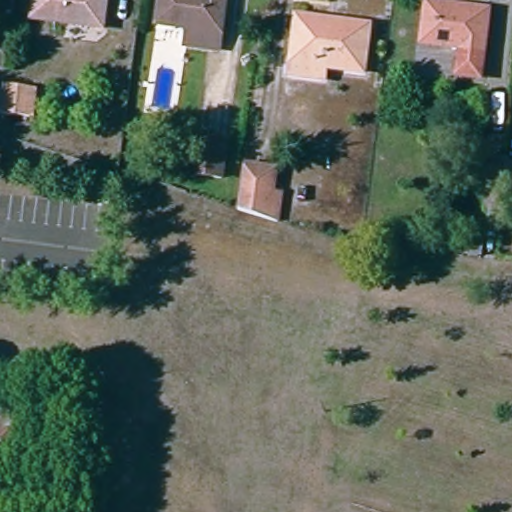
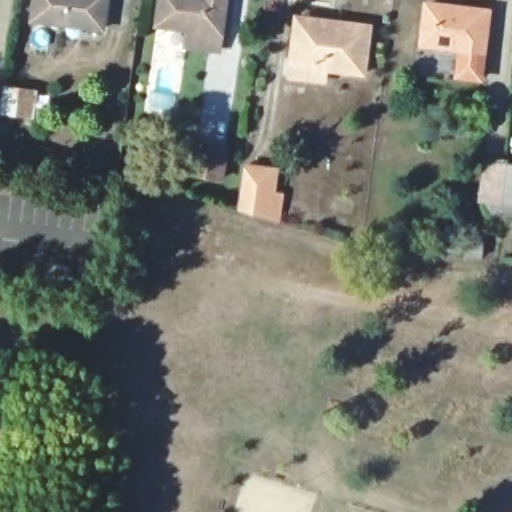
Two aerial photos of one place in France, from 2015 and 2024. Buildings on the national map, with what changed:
unchanged [(44,26),(32,25),(35,0),(102,0),(99,33),(44,26)]
unchanged [(204,57),(185,55),(187,40),(158,36),(162,0),(166,0),(200,5),(200,0),(224,0),(217,59),(204,57)]
unchanged [(452,52),(417,48),(421,7),(480,14),(473,83),(449,80),(452,52)]
unchanged [(354,73),(315,71),(314,80),(282,78),(284,60),(293,60),(295,31),(320,33),(321,23),(358,27),(354,73)]
unchanged [(32,99),(28,125),(0,121),(0,116),(2,94),(32,99)]
unchanged [(172,174),(175,140),(205,144),(203,176),(172,174)]
unchanged [(512,173),(512,181),(509,208),(488,205),(469,202),(473,167),(493,170),(512,173)]
unchanged [(275,228),(266,225),(234,216),(240,173),(269,177),(268,201),(279,203),(275,228)]
unchanged [(452,240),(469,241),(469,256),(451,255),(452,240)]
unchanged [(12,435),(12,466),(0,467),(0,435),(12,435)]

